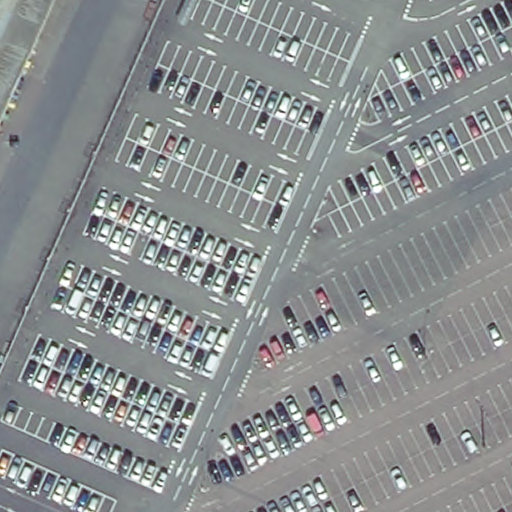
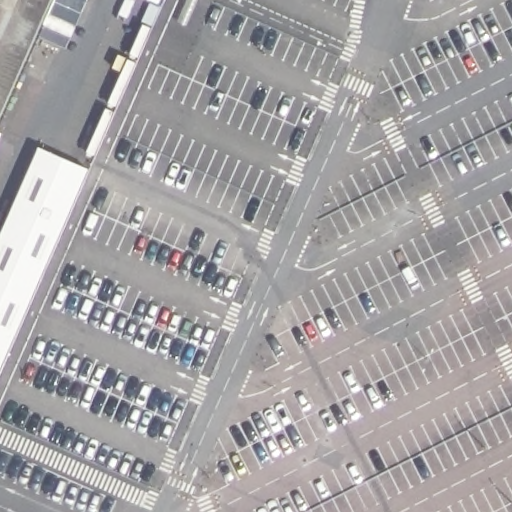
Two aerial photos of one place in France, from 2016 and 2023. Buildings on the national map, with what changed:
unchanged [(0,0),(52,0),(0,116),(0,0)]
new [(94,161),(0,377),(0,225),(37,139),(94,161)]

